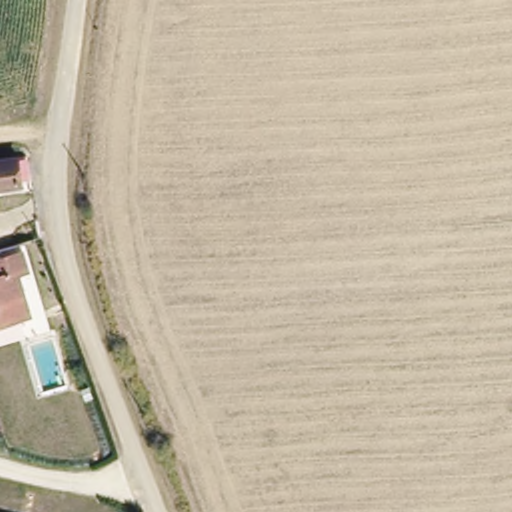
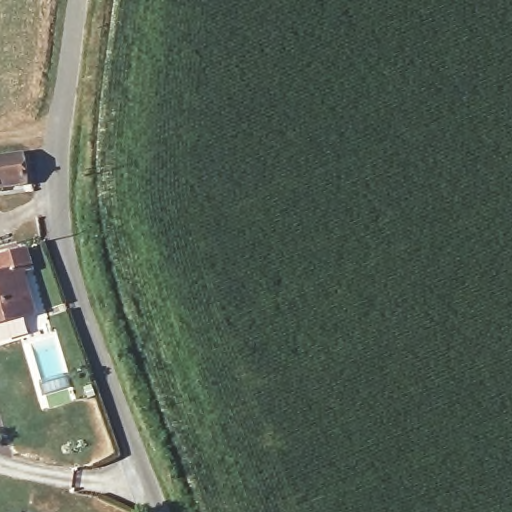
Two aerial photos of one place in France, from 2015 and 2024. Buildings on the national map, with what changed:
unchanged [(18,156),(27,155),(34,178),(0,182),(0,151),(16,148),(18,156)]
unchanged [(0,325),(0,260),(26,254),(34,270),(25,274),(34,315),(0,325)]

